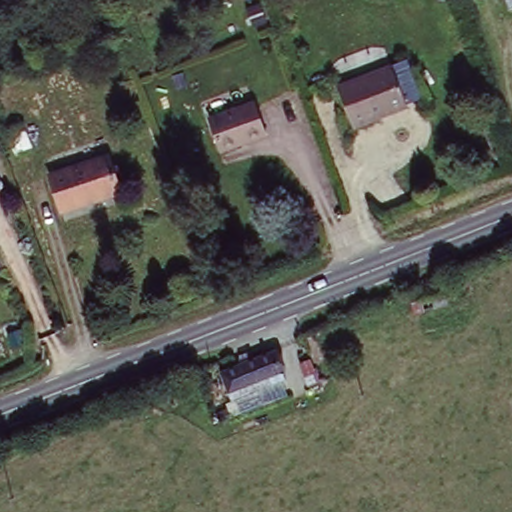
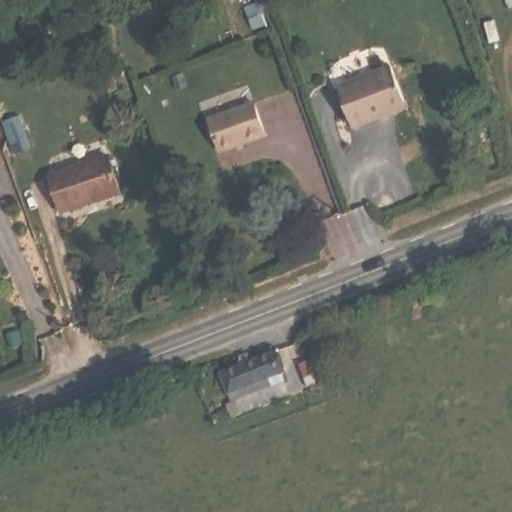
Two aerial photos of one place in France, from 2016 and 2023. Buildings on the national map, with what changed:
unchanged [(330,82),(387,59),(410,109),(351,130),(330,82)]
unchanged [(265,135),(220,151),(209,119),(255,103),(265,135)]
unchanged [(61,207),(50,171),(109,151),(120,187),(61,207)]
unchanged [(445,281),(451,300),(417,308),(412,291),(445,281)]
unchanged [(268,348),(275,367),(261,372),(265,381),(225,395),(215,371),(268,348)]

